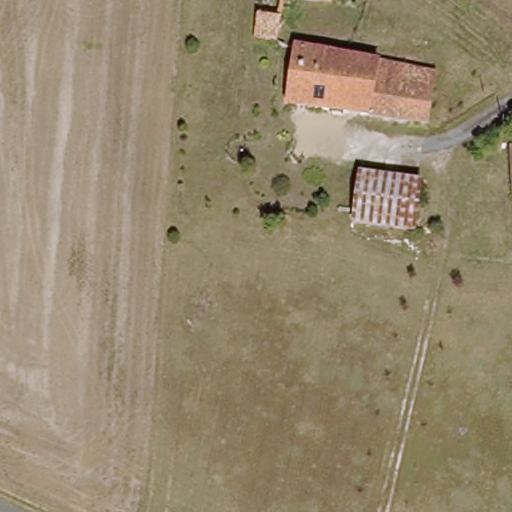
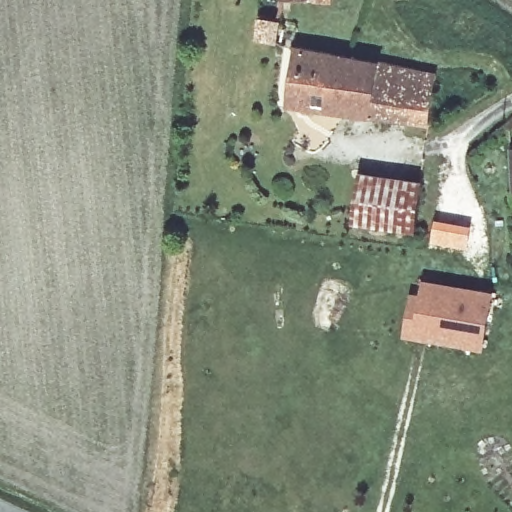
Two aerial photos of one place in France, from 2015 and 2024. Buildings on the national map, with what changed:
unchanged [(284,2),(284,0),(333,0),(333,2),(284,2)]
unchanged [(259,17),(275,19),(271,41),(257,40),(259,17)]
unchanged [(288,105),(296,47),(436,74),(430,125),(288,105)]
unchanged [(512,191),(510,149),(512,149),(512,191)]
unchanged [(415,231),(354,222),(361,175),(422,182),(415,231)]
new [(422,297),(425,281),(477,290),(477,293),(492,296),(483,348),(465,345),(467,335),(432,329),(434,319),(419,316),(422,297)]
new [(412,295),(422,297),(419,316),(434,319),(432,329),(467,335),(465,345),(406,334),(412,295)]

